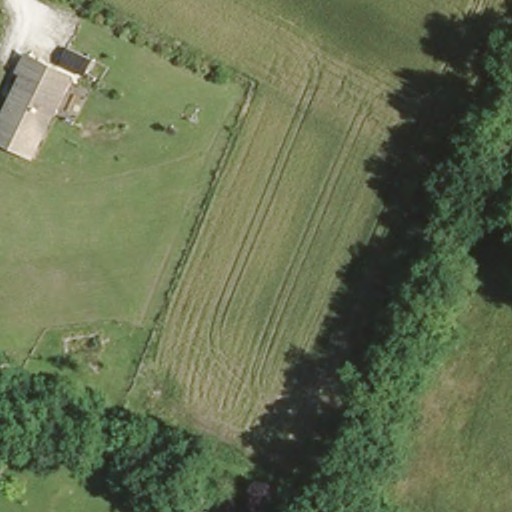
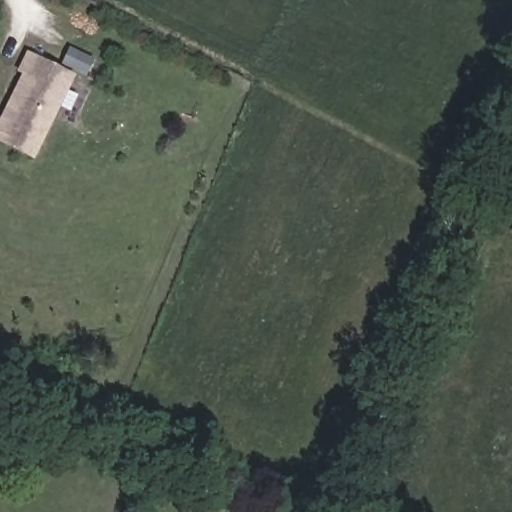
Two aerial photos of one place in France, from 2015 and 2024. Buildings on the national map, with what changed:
unchanged [(37,162),(0,144),(0,121),(22,77),(17,73),(28,53),(78,75),(37,162)]

